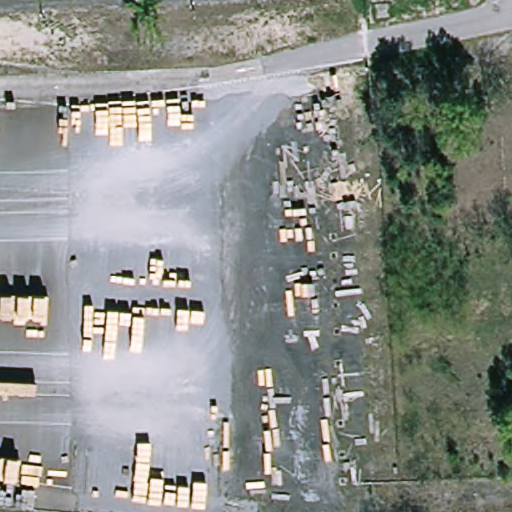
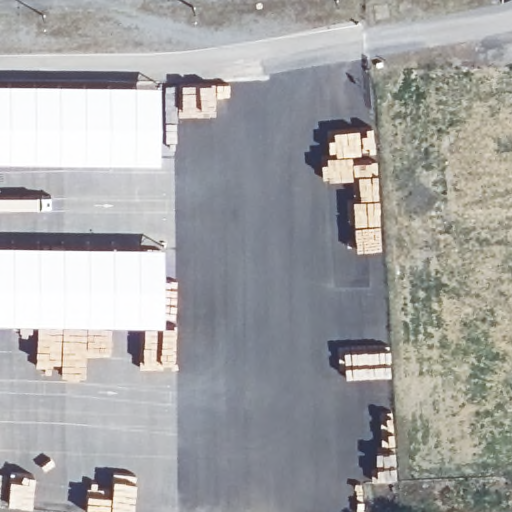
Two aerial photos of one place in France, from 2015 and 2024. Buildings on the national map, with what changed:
new [(0,80),(159,82),(158,159),(0,158),(0,80)]
new [(0,242),(163,244),(163,322),(0,320),(0,242)]

